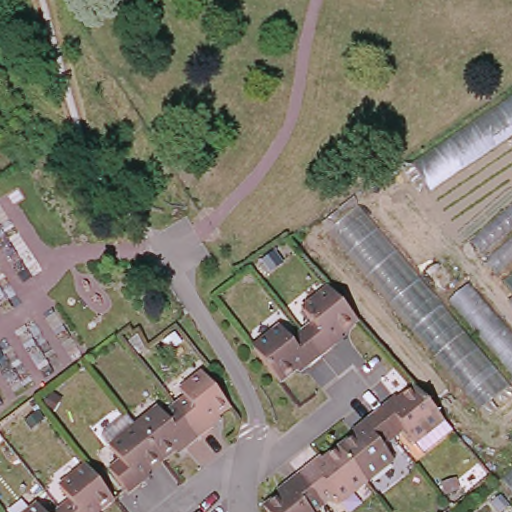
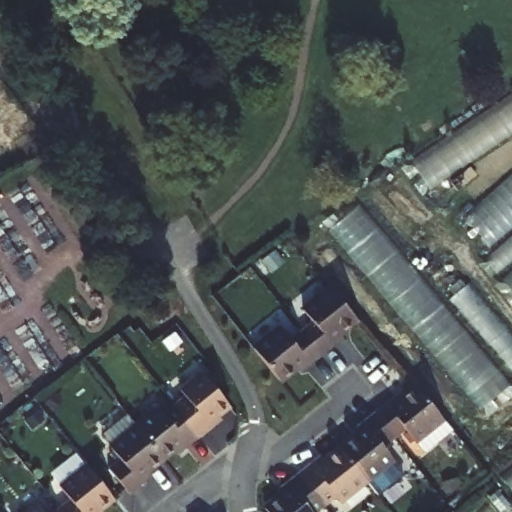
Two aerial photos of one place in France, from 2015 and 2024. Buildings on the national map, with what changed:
unchanged [(424,189),(408,162),(512,92),(512,131),(424,189)]
new [(464,221),(512,176),(512,226),(488,248),(464,221)]
unchanged [(328,230),(358,205),(440,302),(467,280),(512,334),(512,382),(479,408),(328,230)]
unchanged [(484,259),(512,235),(512,293),(484,259)]
unchanged [(334,353),(322,362),(301,335),(312,326),(302,315),(330,294),(357,326),(340,339),(343,345),(334,353)]
unchanged [(295,375),(279,387),(252,354),(280,333),(290,345),(301,335),(322,362),(310,372),(299,380),(295,375)]
unchanged [(216,432),(204,442),(185,419),(180,411),(190,403),(186,397),(208,378),(211,382),(234,411),(222,420),(226,424),(216,432)]
unchanged [(410,441),(399,449),(379,424),(390,415),(400,407),(405,411),(420,399),(447,430),(420,452),(410,441)]
unchanged [(178,455),(167,464),(142,431),(165,413),(169,419),(180,411),(185,419),(204,442),(191,452),(182,459),(178,455)]
unchanged [(145,489),(133,498),(112,472),(123,464),(105,441),(132,419),(142,431),(167,464),(151,476),(155,481),(145,489)]
unchanged [(399,449),(389,458),(398,469),(371,491),(345,459),(358,448),(355,443),(366,434),(379,424),(399,449)]
unchanged [(344,512),(343,512),(338,507),(331,512),(326,512),(303,484),(315,475),(325,467),(329,471),(345,459),(371,491),(344,512)]
unchanged [(69,499),(60,488),(87,466),(113,498),(97,511),(98,512),(62,512),(58,507),(69,499)]
unchanged [(499,480),(509,472),(512,469),(512,495),(499,480)]
unchanged [(278,512),(284,507),(280,502),(291,494),(303,484),(326,512),(278,512)]
unchanged [(45,512),(30,512),(39,505),(45,512)]
unchanged [(62,512),(52,512),(58,507),(62,512)]

